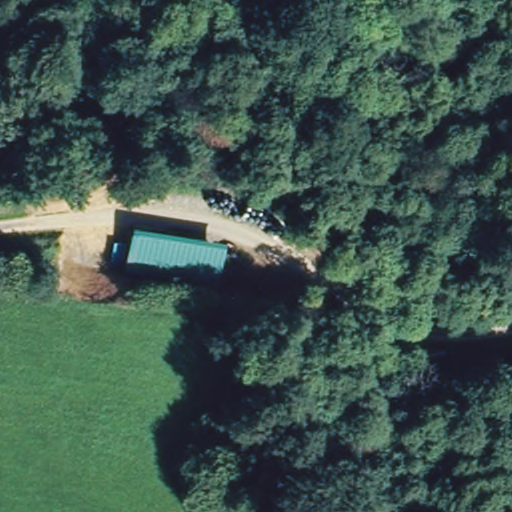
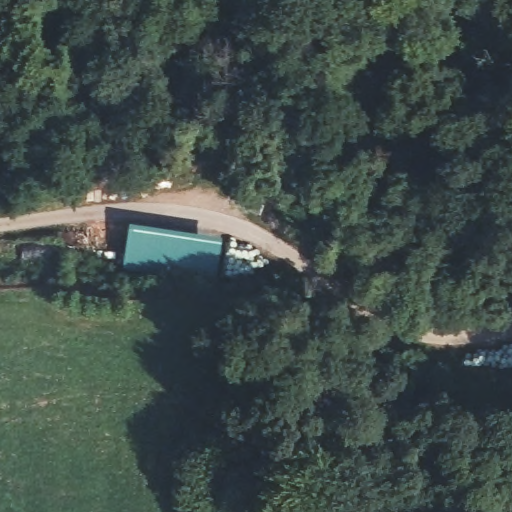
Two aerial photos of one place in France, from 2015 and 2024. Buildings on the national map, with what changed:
unchanged [(222,236),(215,281),(124,267),(131,224),(222,236)]

